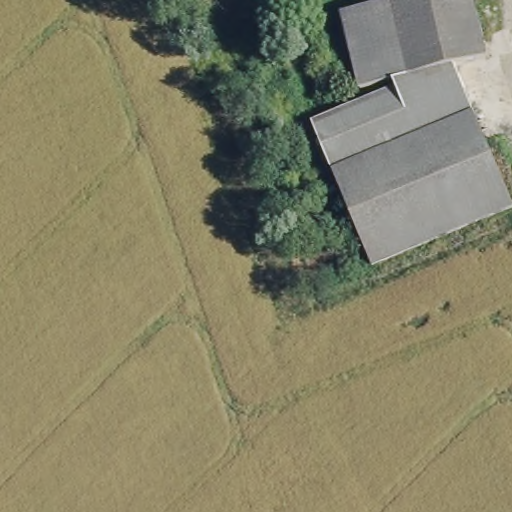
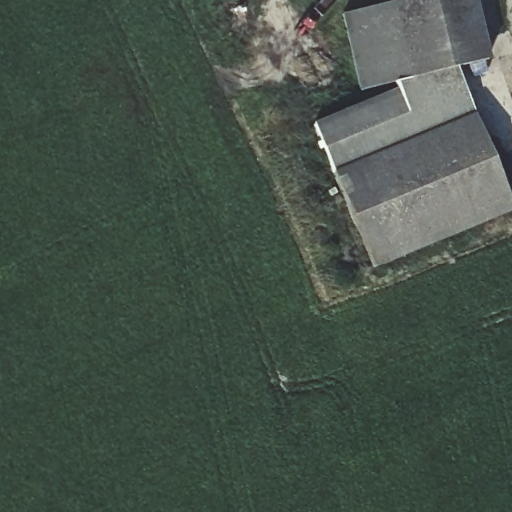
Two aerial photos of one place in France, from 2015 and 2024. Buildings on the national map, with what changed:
unchanged [(399,79),(368,90),(345,18),(393,2),(393,0),(478,0),(492,47),(399,79)]
unchanged [(494,56),(460,68),(508,216),(362,265),(317,121),(405,93),(399,79),(492,47),(494,56)]

